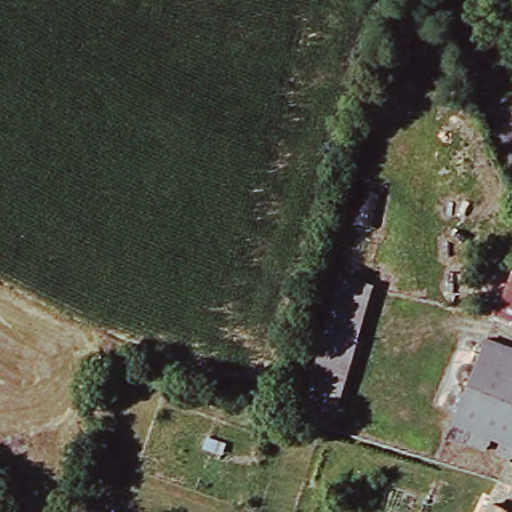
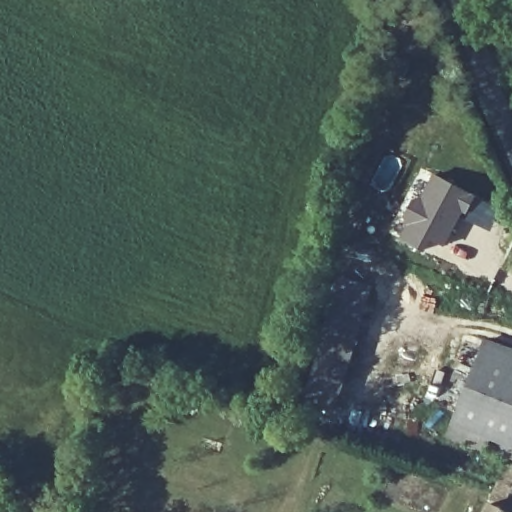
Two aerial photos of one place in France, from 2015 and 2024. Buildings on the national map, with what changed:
new [(410,206),(432,173),(476,195),(466,215),(461,213),(443,248),(429,242),(428,243),(426,242),(421,250),(395,235),(410,206)]
unchanged [(512,316),(509,323),(493,316),(512,271),(512,316)]
unchanged [(326,330),(342,276),(372,285),(355,339),(326,330)]
unchanged [(326,330),(355,339),(343,379),(335,407),(305,397),(315,370),(326,330)]
unchanged [(499,444),(487,440),(482,454),(446,439),(485,343),(512,353),(512,461),(495,454),(499,444)]
unchanged [(508,466),(512,468),(512,512),(485,512),(499,485),(508,466)]

